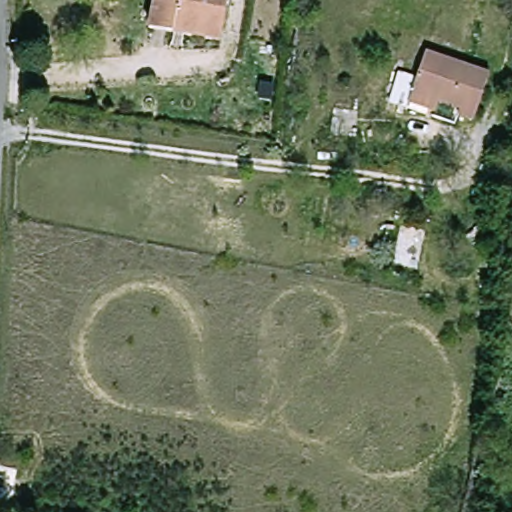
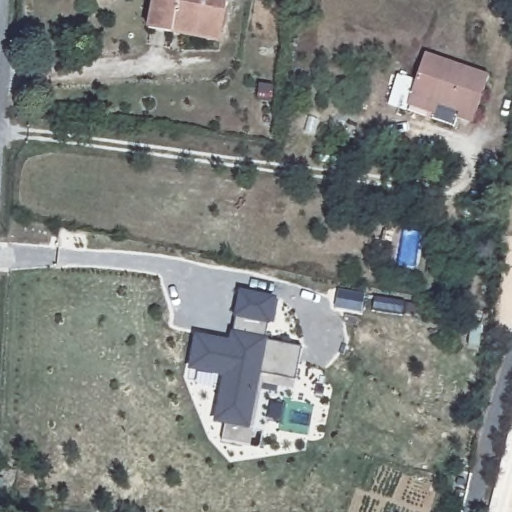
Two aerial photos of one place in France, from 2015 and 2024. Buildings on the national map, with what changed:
unchanged [(169,49),(172,37),(147,32),(154,0),(225,0),(218,34),(216,45),(183,39),(181,51),(169,49)]
unchanged [(406,103),(403,110),(391,106),(403,75),(415,78),(423,52),(489,75),(473,124),(454,117),(456,110),(438,104),(435,113),(406,103)]
new [(245,332),(243,345),(233,343),(233,339),(237,313),(242,288),(275,295),(270,319),(266,336),(245,332)]
new [(233,339),(233,343),(243,345),(245,332),(266,336),(268,340),(303,346),(296,380),(264,374),(250,447),(221,441),(225,425),(212,422),(222,376),(186,370),(193,332),(228,340),(230,330),(234,332),(233,339)]

